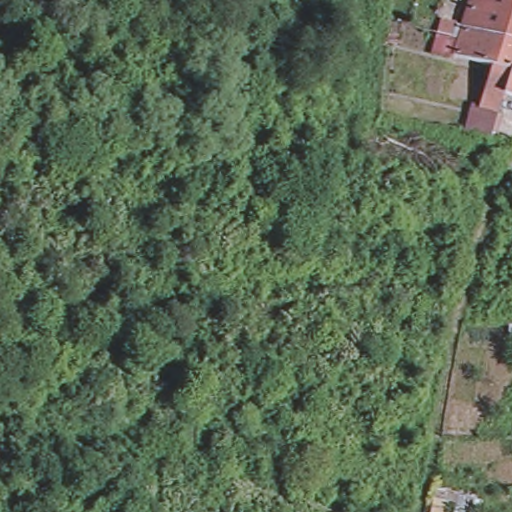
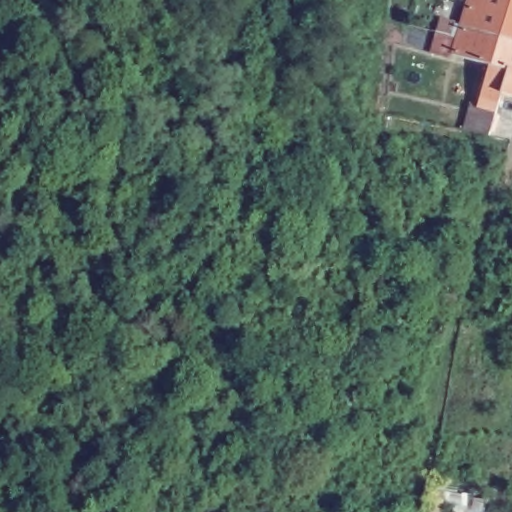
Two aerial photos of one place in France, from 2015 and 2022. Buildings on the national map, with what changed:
unchanged [(456,21),(459,9),(441,3),(441,0),(512,0),(512,38),(456,21)]
unchanged [(463,124),(469,103),(473,104),(486,63),(447,52),(456,21),(512,38),(512,95),(499,90),(493,109),(487,131),(463,124)]
unchanged [(442,34),(437,49),(422,45),(426,30),(442,34)]

